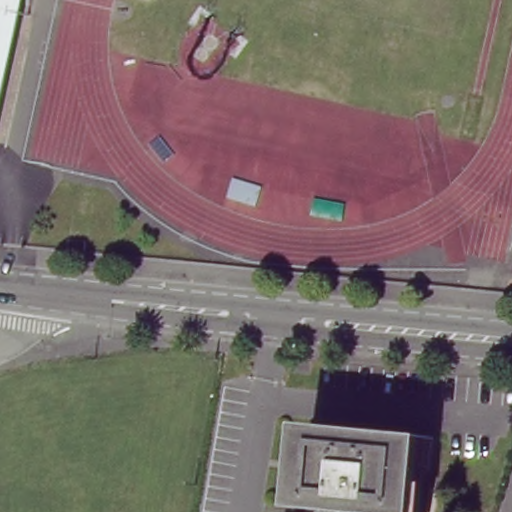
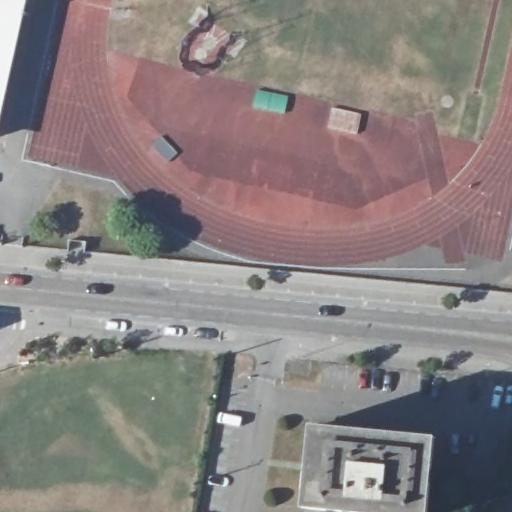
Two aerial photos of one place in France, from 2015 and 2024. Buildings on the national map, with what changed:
unchanged [(0,82),(0,0),(22,0),(0,82)]
unchanged [(316,424),(429,436),(421,512),(381,512),(307,505),(316,424)]

